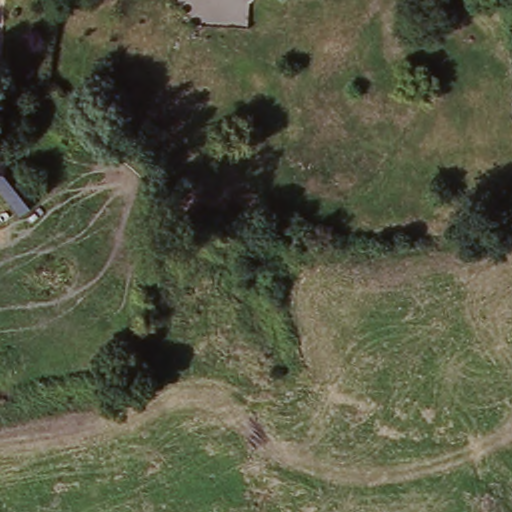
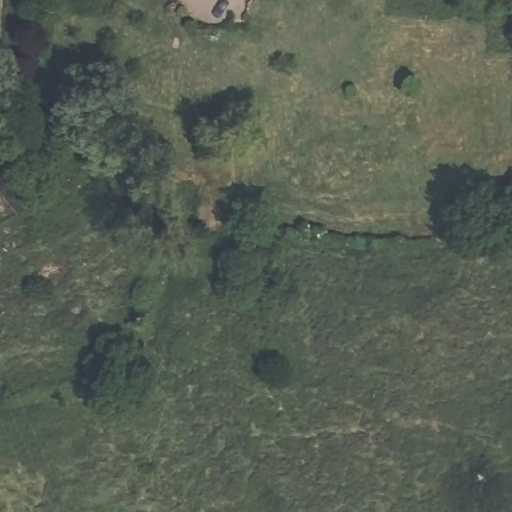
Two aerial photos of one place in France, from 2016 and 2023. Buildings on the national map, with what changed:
unchanged [(40,208),(19,220),(0,189),(0,174),(15,166),(40,208)]

